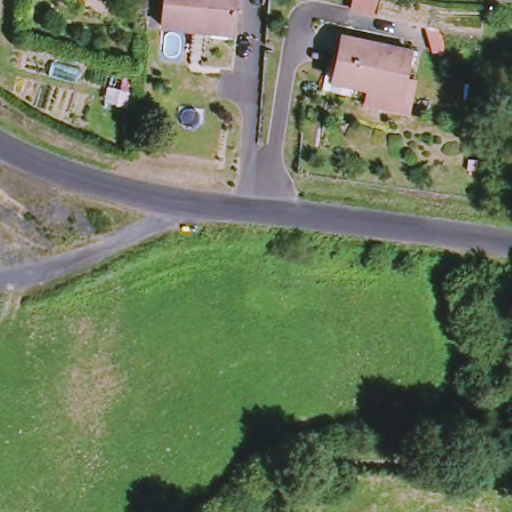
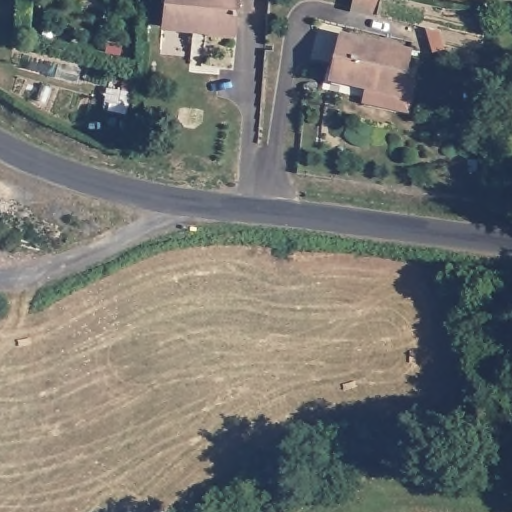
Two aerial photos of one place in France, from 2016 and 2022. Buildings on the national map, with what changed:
unchanged [(165,25),(169,0),(238,0),(232,36),(165,25)]
unchanged [(358,0),(380,0),(383,1),(383,0),(402,0),(445,9),(440,27),(356,11),(358,0)]
unchanged [(410,115),(370,109),(373,92),(336,86),(344,40),(414,52),(410,81),(418,82),(410,115)]

